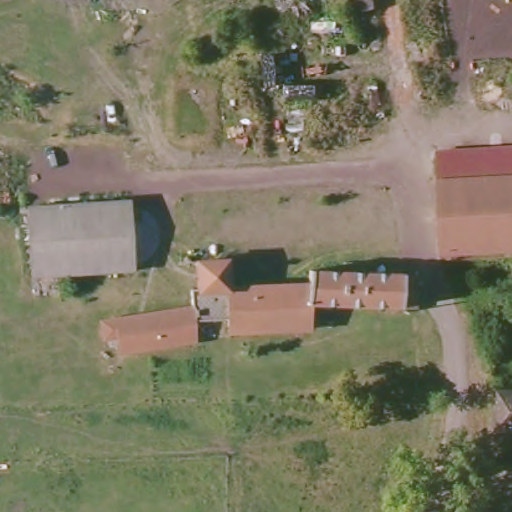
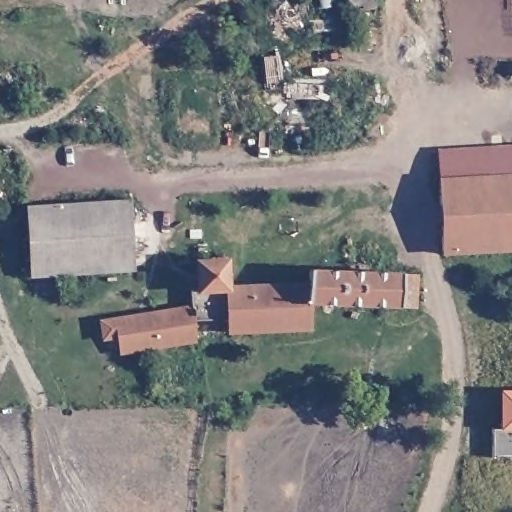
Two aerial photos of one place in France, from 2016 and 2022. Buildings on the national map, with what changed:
unchanged [(512,251),(440,255),(436,182),(512,178),(512,251)]
unchanged [(125,200),(131,272),(31,279),(27,206),(125,200)]
unchanged [(197,262),(228,260),(255,259),(257,286),(309,283),(311,268),(399,273),(419,275),(419,307),(397,310),(311,308),(310,327),(231,333),(124,353),(119,315),(187,304),(187,289),(199,289),(197,262)]
unchanged [(512,431),(501,431),(499,395),(512,395),(512,431)]

